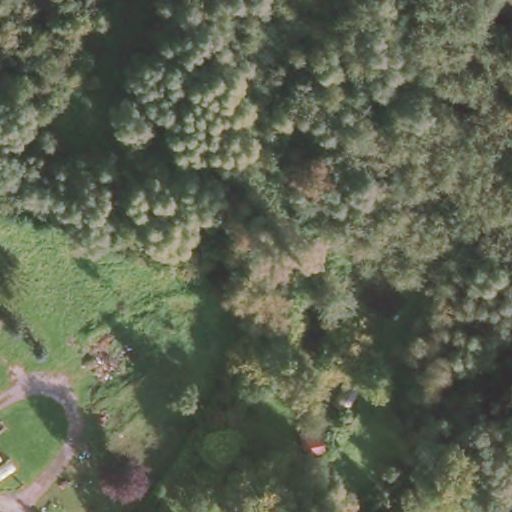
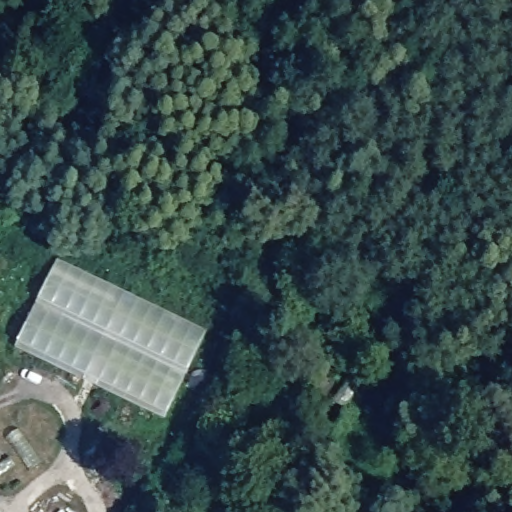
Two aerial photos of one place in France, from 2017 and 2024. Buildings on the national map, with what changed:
new [(52,285),(51,277),(59,260),(207,331),(165,412),(97,385),(17,346),(48,282),(52,285)]

